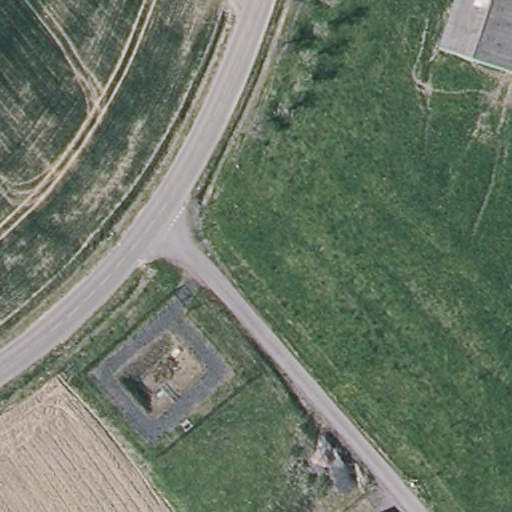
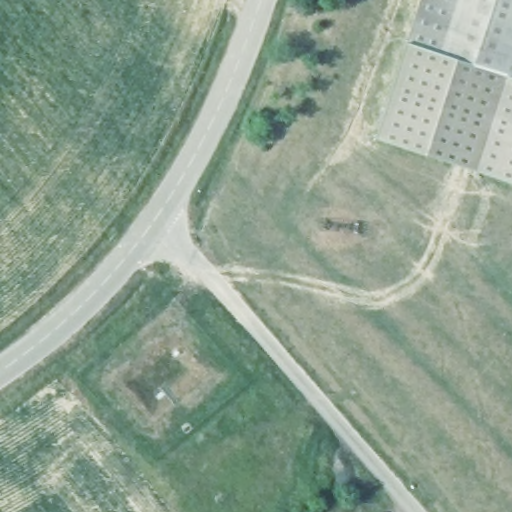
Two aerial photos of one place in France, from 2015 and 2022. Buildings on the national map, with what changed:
new [(440,52),(512,75),(512,181),(375,136),(420,0),(456,0),(440,52)]
unchanged [(440,52),(456,0),(512,0),(512,75),(440,52)]

